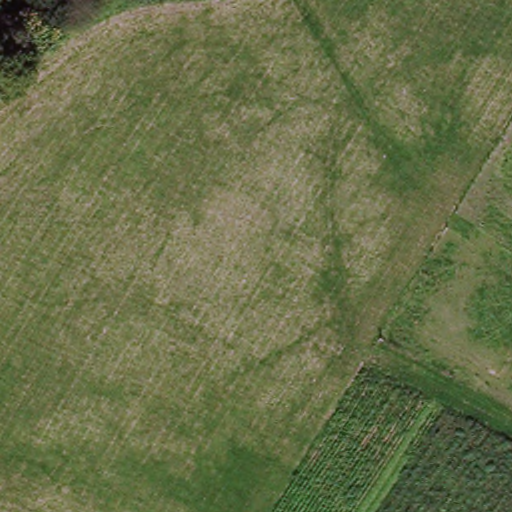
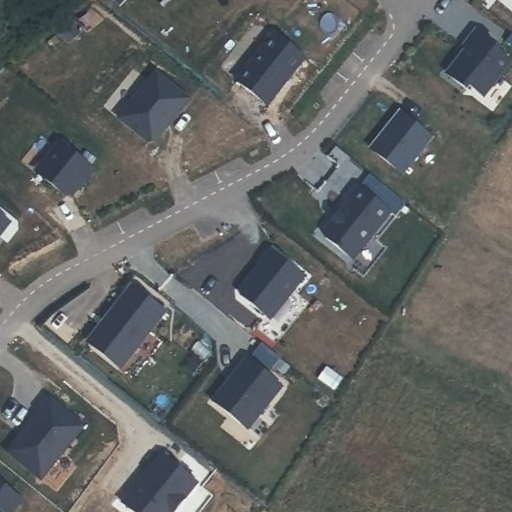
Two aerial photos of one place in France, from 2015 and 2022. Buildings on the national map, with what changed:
new [(512,58),(512,60),(483,96),(470,85),(466,90),(445,75),(465,50),(461,48),(476,30),(512,58)]
new [(306,57),(267,106),(235,82),(273,32),(306,57)]
new [(156,71),(190,97),(154,147),(118,120),(156,71)]
new [(435,137),(402,175),(367,149),(399,110),(435,137)]
new [(59,141),(95,169),(79,190),(77,189),(68,200),(35,172),(59,141)]
new [(391,212),(353,259),(320,234),(347,201),(345,198),(356,184),(391,212)]
new [(0,241),(0,220),(10,228),(0,241)]
new [(305,277),(270,320),(240,296),(239,288),(260,265),(256,262),(268,247),(305,277)]
new [(166,311),(121,370),(85,343),(131,285),(166,311)]
new [(283,386),(248,431),(211,402),(246,357),(283,386)]
new [(86,426),(40,481),(6,453),(38,415),(35,412),(47,396),(86,426)]
new [(185,497),(186,497),(176,512),(132,512),(120,503),(160,452),(199,482),(185,497)]
new [(12,512),(0,512),(0,480),(23,498),(12,512)]

